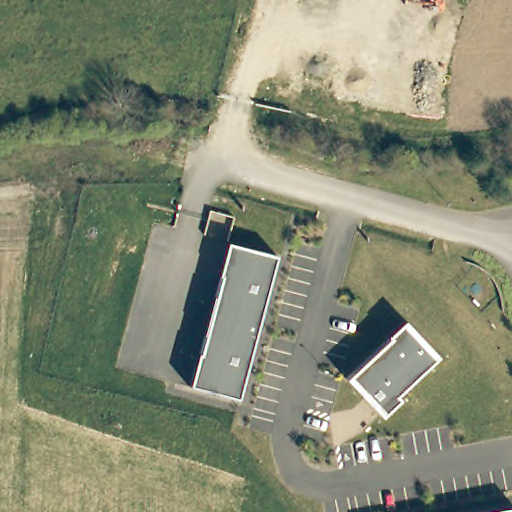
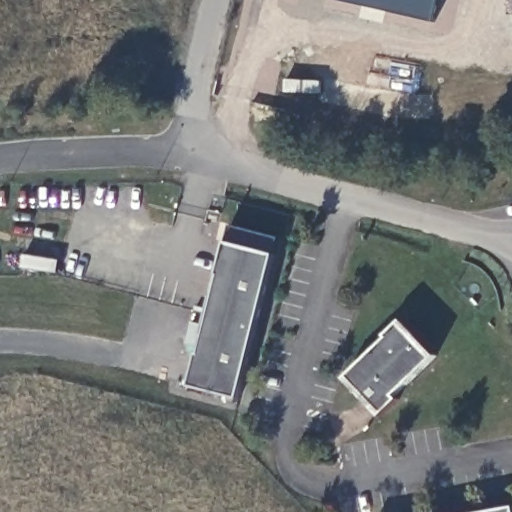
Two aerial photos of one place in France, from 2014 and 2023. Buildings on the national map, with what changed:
new [(438,23),(337,1),(337,0),(443,0),(438,23)]
unchanged [(184,388),(193,355),(195,355),(216,277),(214,277),(222,244),(272,257),(234,401),(184,388)]
unchanged [(341,381),(383,340),(382,338),(398,322),(400,324),(397,327),(411,341),(413,338),(415,340),(412,342),(428,360),(431,357),(432,358),(412,377),(391,397),(395,402),(376,419),(375,417),(377,415),(362,398),(359,401),(357,399),(360,397),(345,380),(342,382),(341,381)]
unchanged [(510,512),(493,512),(510,509),(510,512)]

